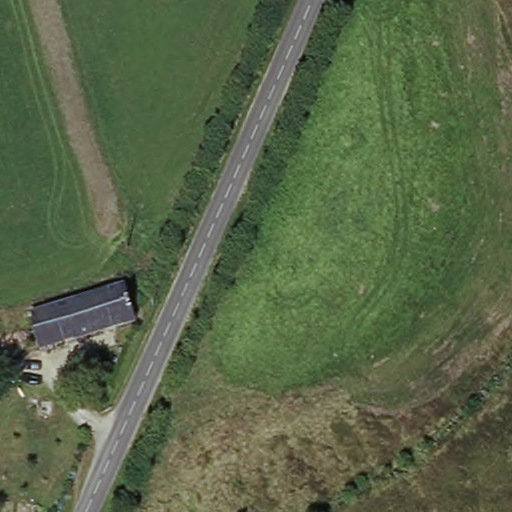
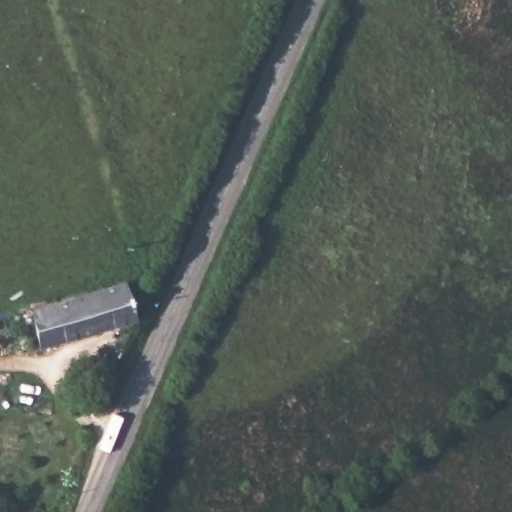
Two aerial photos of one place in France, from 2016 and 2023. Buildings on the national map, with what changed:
unchanged [(140,327),(43,357),(33,318),(32,313),(131,287),(140,327)]

